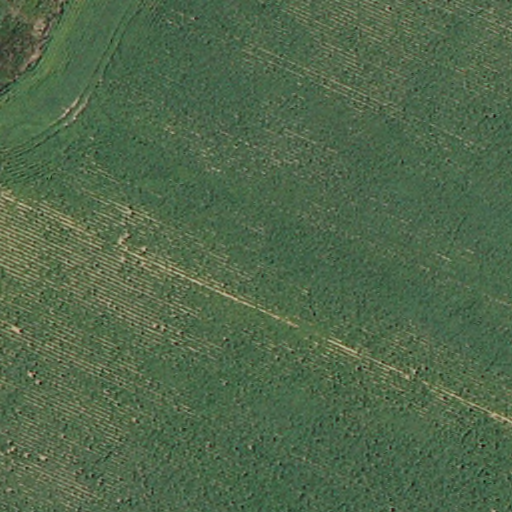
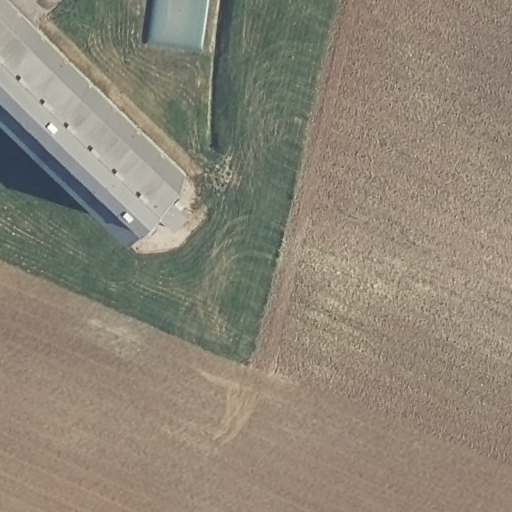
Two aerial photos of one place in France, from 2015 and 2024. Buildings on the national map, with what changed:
new [(170,188),(190,215),(176,230),(153,207),(135,226),(0,85),(0,0),(8,0),(186,174),(170,188)]

